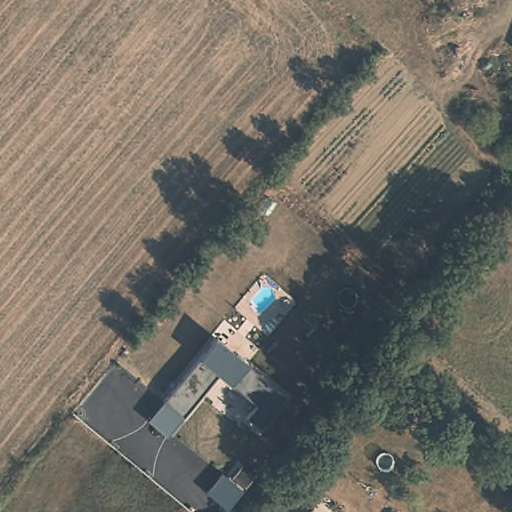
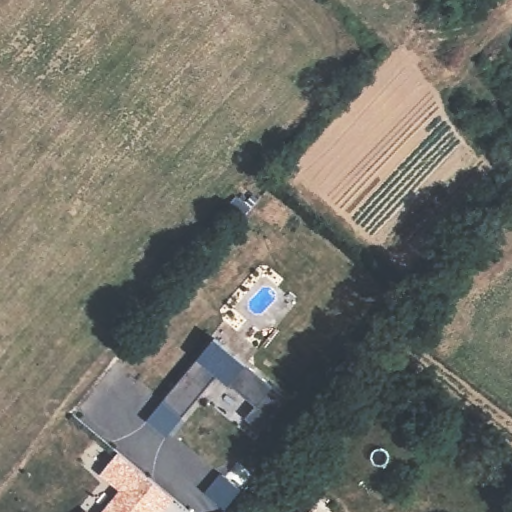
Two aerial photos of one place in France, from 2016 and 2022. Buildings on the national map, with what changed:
unchanged [(212,339),(284,397),(258,427),(245,417),(254,404),(231,383),(227,388),(216,378),(164,437),(145,422),(212,339)]
new [(109,480),(126,459),(173,499),(162,512),(103,512),(121,490),(109,480)]
new [(222,473),(242,489),(226,508),(207,493),(222,473)]

